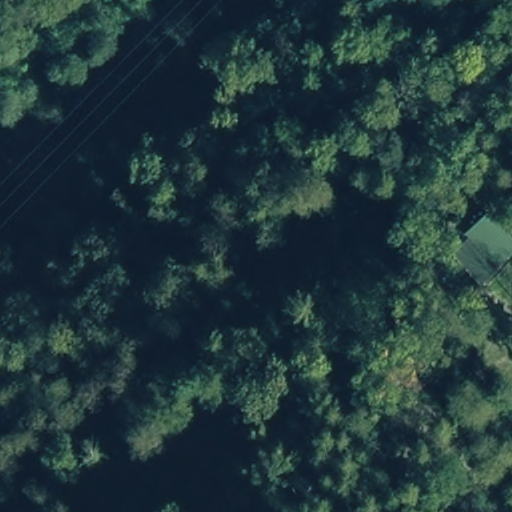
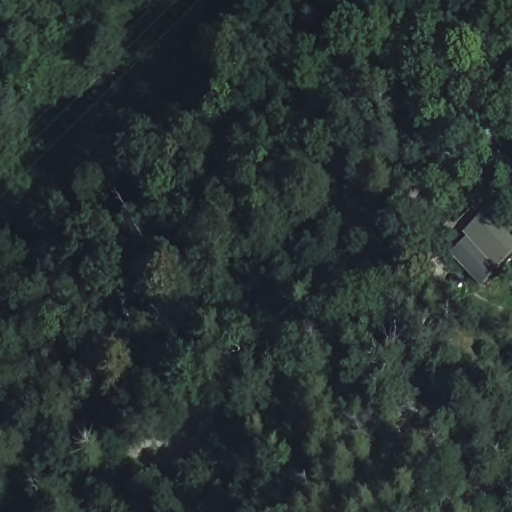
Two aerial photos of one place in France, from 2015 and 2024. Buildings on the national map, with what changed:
unchanged [(447,260),(465,245),(454,234),(480,211),(512,246),(512,262),(480,294),(447,260)]

